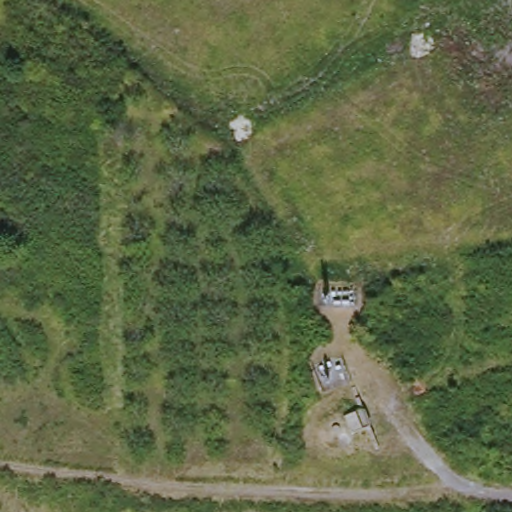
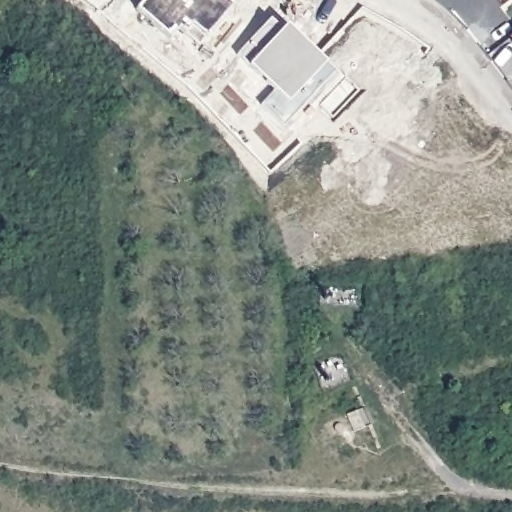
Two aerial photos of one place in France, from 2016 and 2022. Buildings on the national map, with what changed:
new [(200,47),(180,30),(171,40),(137,10),(145,0),(240,0),(200,47)]
new [(284,127),(262,105),(279,89),(242,52),(279,15),(341,69),(284,127)]
new [(510,38),(512,36),(512,41),(510,38)]

